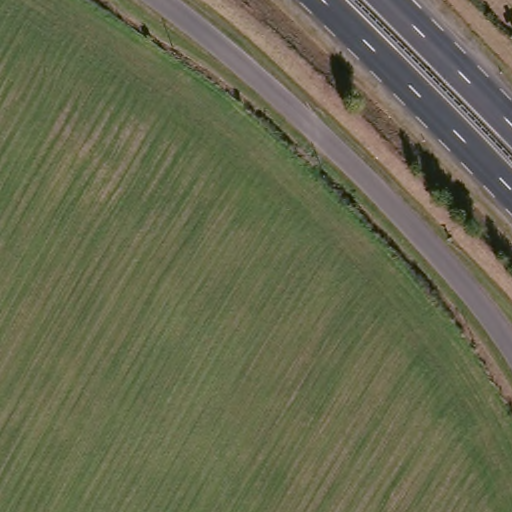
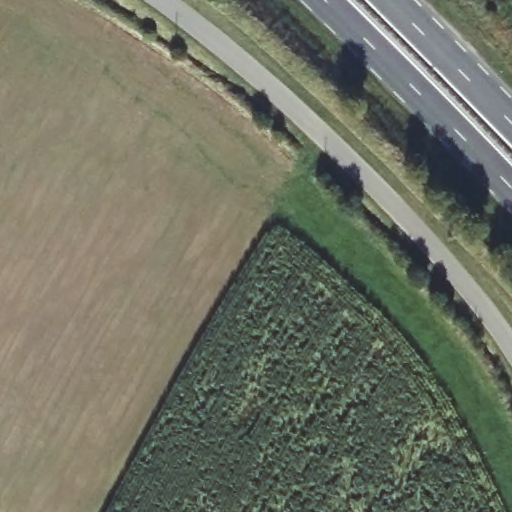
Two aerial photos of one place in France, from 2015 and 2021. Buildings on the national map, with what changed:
[]

